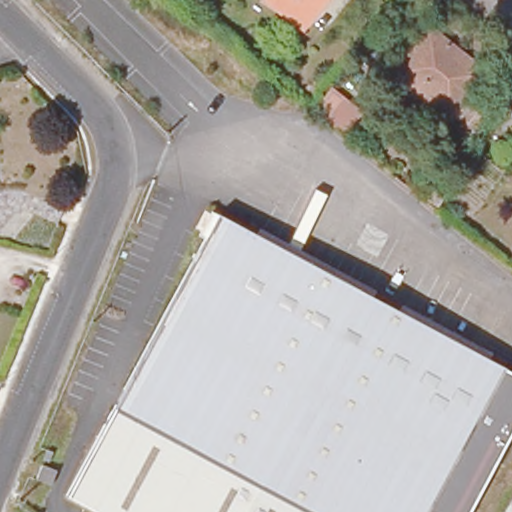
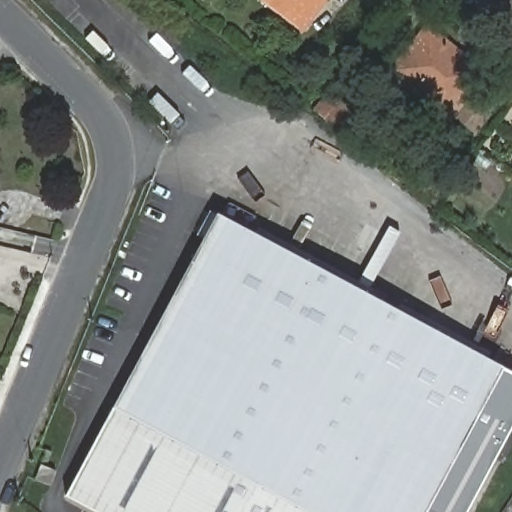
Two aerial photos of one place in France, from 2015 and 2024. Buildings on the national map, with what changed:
unchanged [(298,26),(263,0),(317,0),(298,26)]
unchanged [(423,102),(432,90),(427,86),(422,92),(396,71),(426,31),(485,79),(450,124),(423,102)]
unchanged [(350,126),(342,137),(312,113),(329,91),(351,109),(342,120),(350,126)]
unchanged [(471,104),(491,119),(478,135),(458,120),(471,104)]
unchanged [(433,181),(447,190),(436,207),(423,198),(433,181)]
unchanged [(466,512),(98,512),(67,495),(217,214),(512,371),(512,429),(466,512)]
unchanged [(44,453),(48,444),(53,446),(49,456),(44,453)]
unchanged [(42,458),(57,465),(51,480),(36,473),(42,458)]

